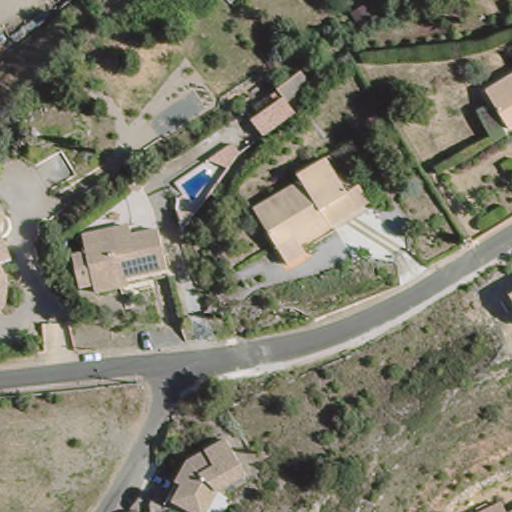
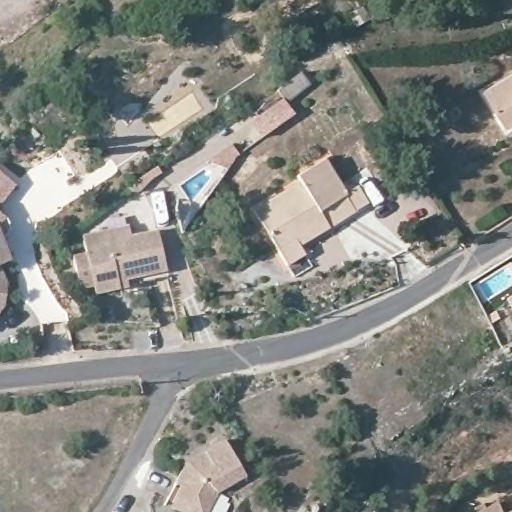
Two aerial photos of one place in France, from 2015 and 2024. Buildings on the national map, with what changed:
unchanged [(503,139),(481,99),(512,81),(512,134),(503,139)]
unchanged [(287,115),(260,129),(255,114),(280,101),(287,115)]
unchanged [(368,203),(328,227),(325,221),(292,242),(273,254),(250,218),(303,184),(298,176),(321,161),(344,197),(359,188),(368,203)]
new [(0,205),(0,172),(15,185),(0,205)]
new [(0,225),(0,212),(6,217),(0,225)]
unchanged [(161,266),(117,280),(120,288),(93,297),(81,257),(79,246),(122,232),(125,244),(153,235),(161,266)]
unchanged [(0,269),(0,256),(3,268),(0,269)]
unchanged [(3,297),(1,311),(0,313),(0,281),(1,283),(3,297)]
unchanged [(511,294),(512,293),(512,296),(511,294)]
unchanged [(247,475),(215,491),(208,512),(194,512),(170,505),(185,457),(226,437),(247,475)]
unchanged [(501,501),(506,512),(478,512),(501,501)]
unchanged [(512,511),(512,512),(511,512),(512,511)]

